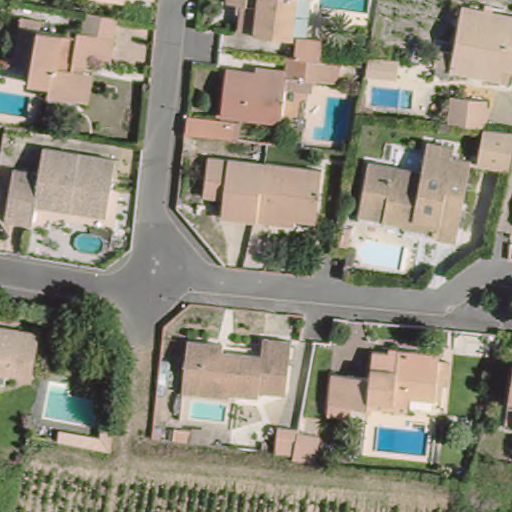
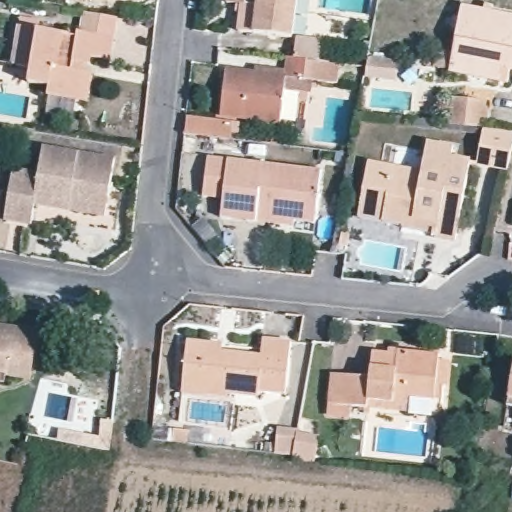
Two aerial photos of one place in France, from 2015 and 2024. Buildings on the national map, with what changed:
unchanged [(235,24),(240,2),(227,0),(290,0),(288,14),(288,32),(277,31),(235,24)]
unchanged [(512,11),(512,63),(503,62),(501,75),(450,70),(459,4),(512,11)]
unchanged [(68,32),(69,26),(94,30),(96,9),(118,13),(116,34),(113,52),(91,50),(90,59),(69,57),(67,71),(85,74),(82,100),(45,94),(46,87),(24,82),(25,64),(14,63),(19,25),(68,32)]
unchanged [(292,41),(294,31),(314,34),(324,36),(323,59),(337,60),(336,82),(290,77),(290,55),(292,41)]
unchanged [(392,52),(391,67),(359,62),(359,59),(361,47),(392,52)]
unchanged [(290,77),(283,121),(227,115),(232,71),(290,77)]
unchanged [(475,131),(443,127),(448,100),(477,104),(475,131)]
unchanged [(224,136),(183,130),(185,112),(224,114),(224,136)]
unchanged [(475,131),(512,135),(511,147),(508,170),(472,165),(473,144),(475,131)]
unchanged [(102,218),(62,211),(63,202),(32,197),(31,205),(27,222),(2,219),(12,170),(37,172),(41,148),(113,161),(102,218)]
unchanged [(446,157),(446,168),(464,168),(452,249),(425,246),(426,231),(360,225),(366,175),(415,179),(418,154),(446,157)]
unchanged [(266,226),(217,221),(220,199),(200,196),(205,157),(225,159),(321,170),(315,224),(294,222),(293,230),(266,226)]
unchanged [(7,327),(39,333),(32,377),(12,374),(11,384),(0,382),(0,334),(6,336),(7,327)]
unchanged [(256,400),(256,406),(232,404),(232,392),(212,390),(211,397),(190,394),(196,349),(222,352),(222,361),(262,363),(263,347),(293,350),(287,403),(256,400)]
unchanged [(325,371),(365,375),(367,359),(396,361),(397,355),(427,357),(442,357),(437,393),(436,403),(404,400),(404,406),(403,416),(354,410),(338,408),(337,422),(318,420),(320,407),(325,371)]
unchanged [(507,359),(512,360),(512,405),(501,402),(507,359)]
unchanged [(100,412),(112,413),(107,447),(82,442),(86,429),(97,432),(100,412)]
unchanged [(328,469),(308,467),(288,465),(292,437),(312,440),(312,442),(331,444),(328,469)]
unchanged [(205,455),(185,452),(186,442),(206,443),(205,455)]

